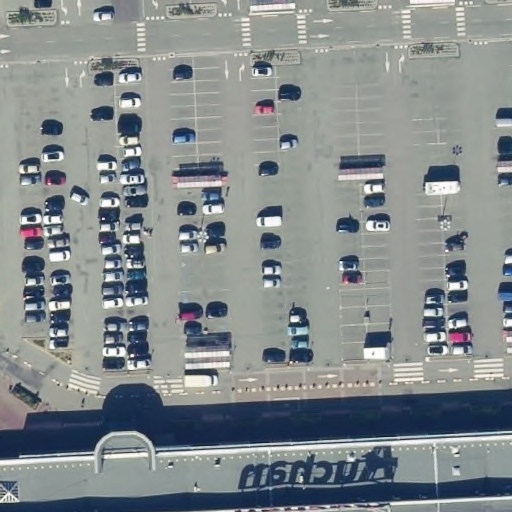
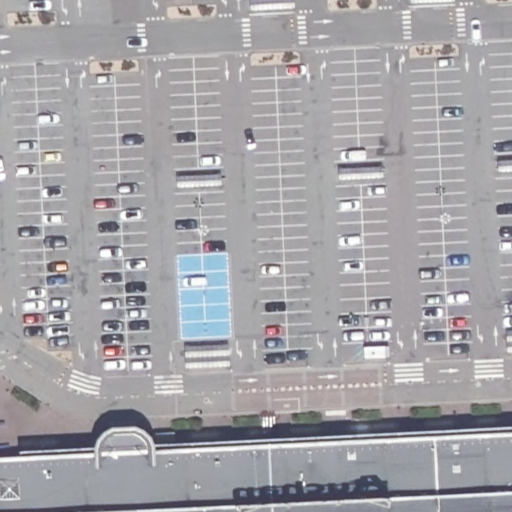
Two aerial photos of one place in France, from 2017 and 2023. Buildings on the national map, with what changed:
unchanged [(279,408),(293,404),(322,410),(341,425),(344,438),(247,443),(259,421),(279,408)]
unchanged [(247,443),(344,438),(445,433),(512,429),(512,512),(0,512),(0,457),(247,443)]

